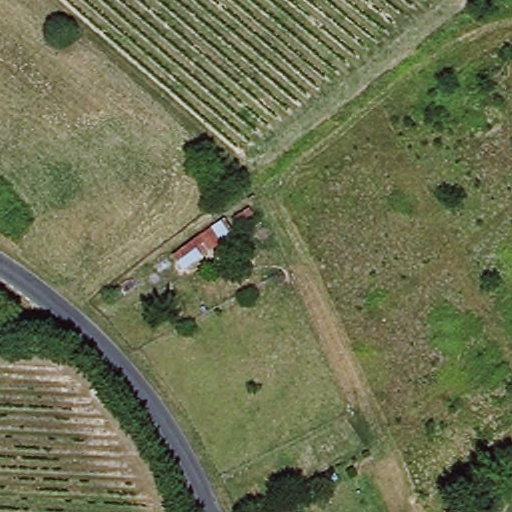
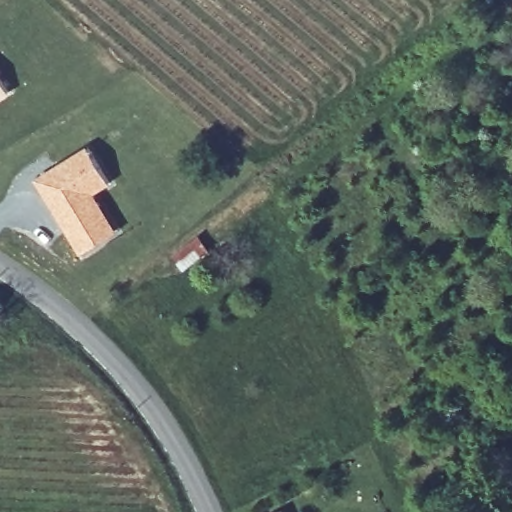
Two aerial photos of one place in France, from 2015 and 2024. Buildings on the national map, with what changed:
new [(10,94),(0,100),(0,77),(10,94)]
new [(89,146),(111,182),(95,193),(118,230),(81,251),(38,178),(89,146)]
unchanged [(235,233),(184,268),(174,255),(224,217),(235,233)]
unchanged [(290,512),(269,512),(286,504),(290,512)]

